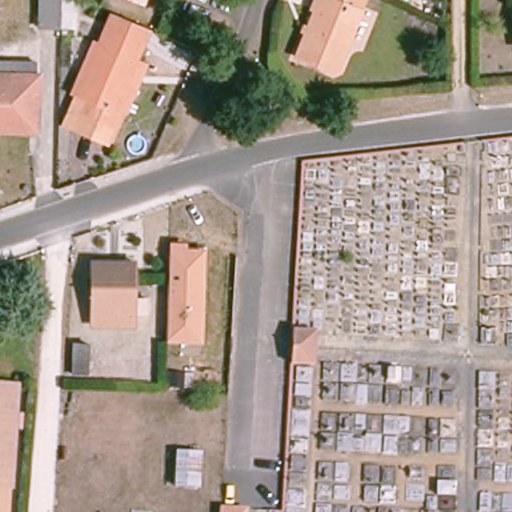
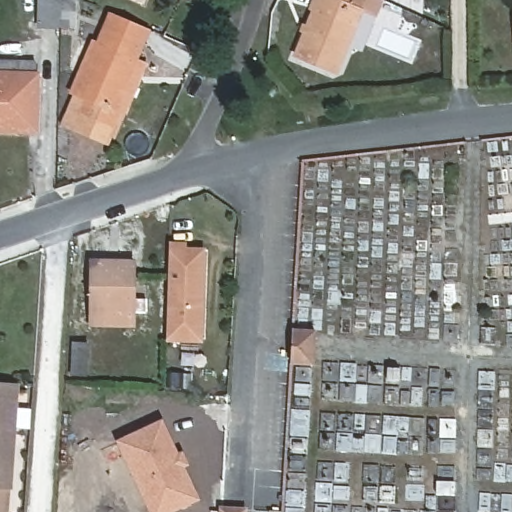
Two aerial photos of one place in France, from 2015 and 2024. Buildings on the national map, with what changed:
unchanged [(59,28),(40,27),(40,0),(60,0),(59,28)]
new [(63,0),(77,0),(77,9),(76,29),(62,29),(63,4),(63,0)]
unchanged [(139,0),(143,0),(142,1),(139,0)]
unchanged [(319,0),(363,0),(358,11),(361,11),(337,71),(297,55),(319,0)]
unchanged [(83,133),(89,119),(79,115),(85,100),(77,96),(99,45),(113,13),(115,14),(150,29),(136,61),(147,66),(137,89),(126,84),(114,111),(121,114),(114,130),(107,127),(102,141),(83,133)]
unchanged [(37,130),(20,130),(0,129),(0,62),(38,63),(37,130)]
unchanged [(203,343),(167,341),(170,239),(188,240),(188,246),(207,247),(203,343)]
unchanged [(146,298),(146,312),(132,311),(132,326),(90,324),(92,260),(110,260),(134,261),(134,271),(133,298),(146,298)]
unchanged [(316,330),(314,367),(293,366),(296,329),(316,330)]
unchanged [(75,342),(89,343),(87,373),(72,372),(75,342)]
unchanged [(14,403),(6,512),(0,512),(0,384),(15,385),(14,403)]
new [(164,512),(151,512),(120,443),(161,424),(177,457),(171,460),(174,467),(180,464),(180,465),(195,497),(164,512)]
new [(185,463),(180,465),(180,464),(174,467),(171,460),(177,457),(176,456),(181,454),(185,463)]

